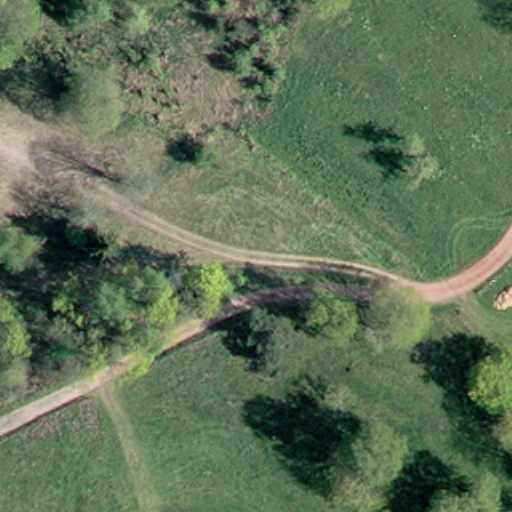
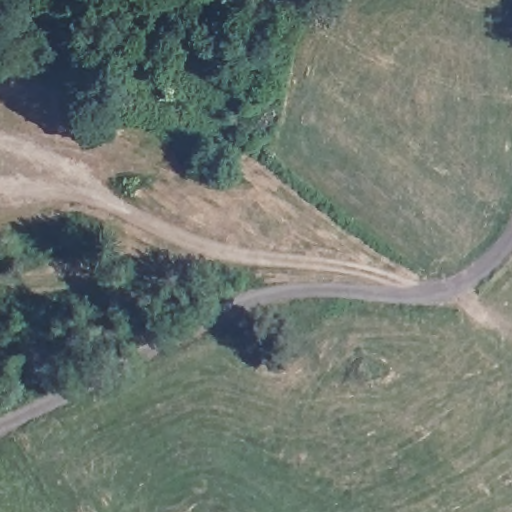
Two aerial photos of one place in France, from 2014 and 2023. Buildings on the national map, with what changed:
[]

